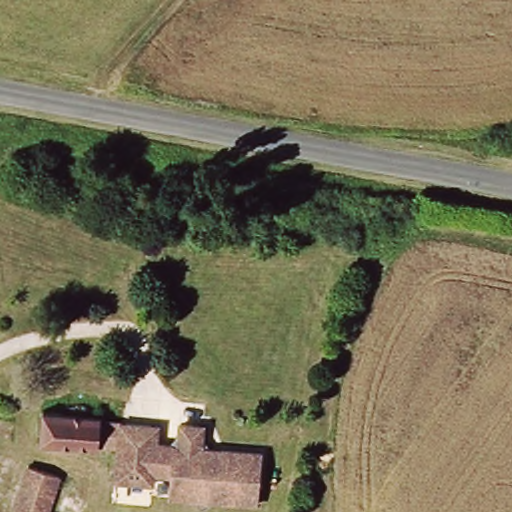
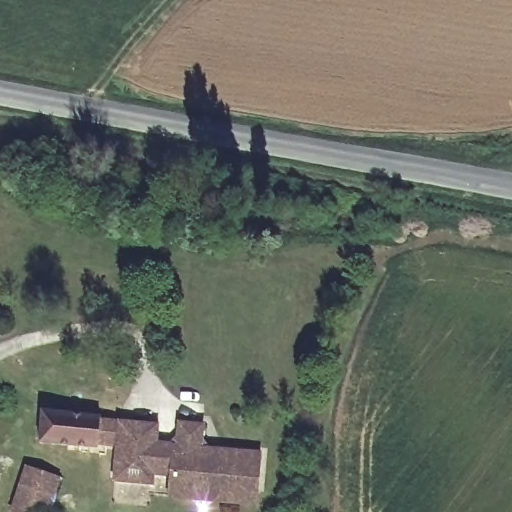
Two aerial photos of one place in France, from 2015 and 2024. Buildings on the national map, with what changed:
unchanged [(106,422),(103,452),(38,446),(43,415),(106,422)]
unchanged [(160,428),(159,442),(172,445),(183,439),(184,426),(207,430),(206,441),(216,450),(262,455),(260,507),(174,498),(175,481),(163,478),(162,486),(121,480),(124,455),(103,452),(106,422),(160,428)]
unchanged [(63,471),(50,512),(15,512),(31,461),(63,471)]

